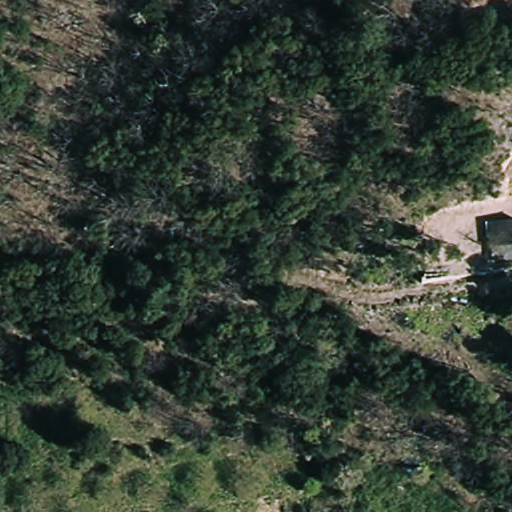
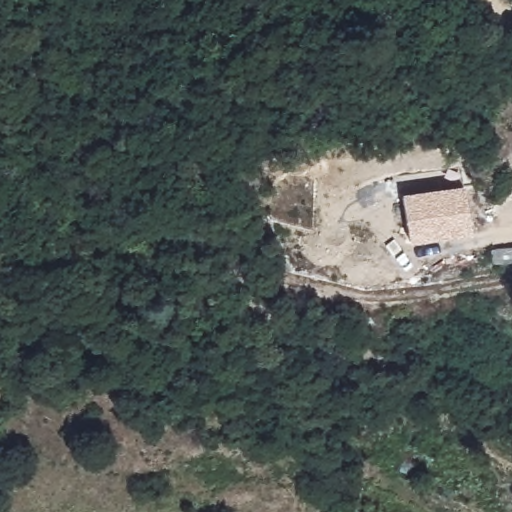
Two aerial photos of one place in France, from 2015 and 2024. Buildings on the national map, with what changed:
new [(473,236),(409,245),(402,194),(465,187),(473,236)]
demolished [(501,252),(499,245),(512,240),(512,250),(502,254),(501,252)]
new [(492,265),(490,249),(512,247),(512,262),(492,265)]

